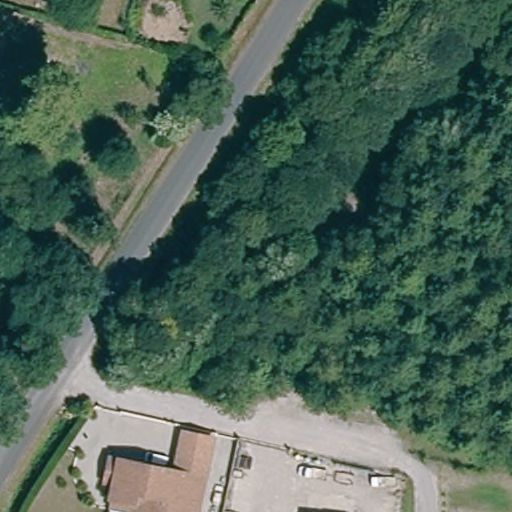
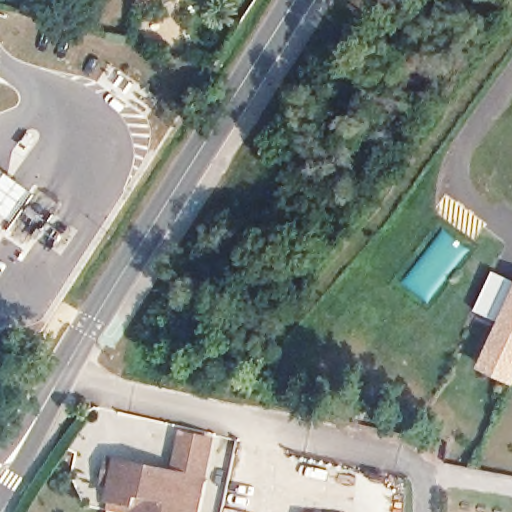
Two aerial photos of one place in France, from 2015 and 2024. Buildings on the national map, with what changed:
unchanged [(271,0),(268,5),(259,0),(271,0)]
new [(16,220),(0,208),(0,166),(10,173),(34,189),(16,220)]
new [(494,272),(512,280),(512,305),(504,323),(497,320),(476,310),(483,297),(494,272)]
new [(489,356),(512,305),(512,380),(484,367),(489,356)]
unchanged [(179,431),(214,438),(205,474),(171,468),(179,431)]
unchanged [(113,495),(115,482),(102,479),(108,456),(171,468),(205,474),(197,512),(137,512),(110,506),(113,495)]

